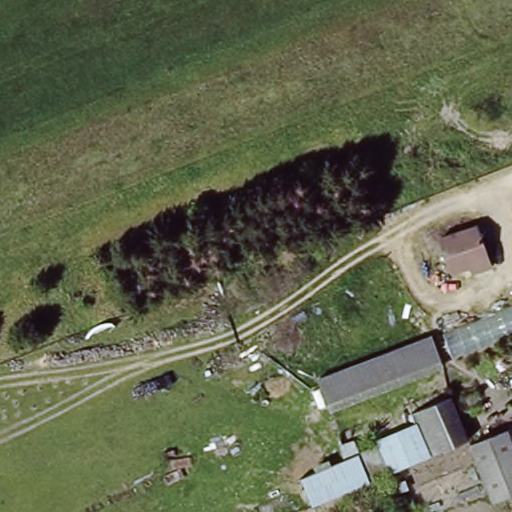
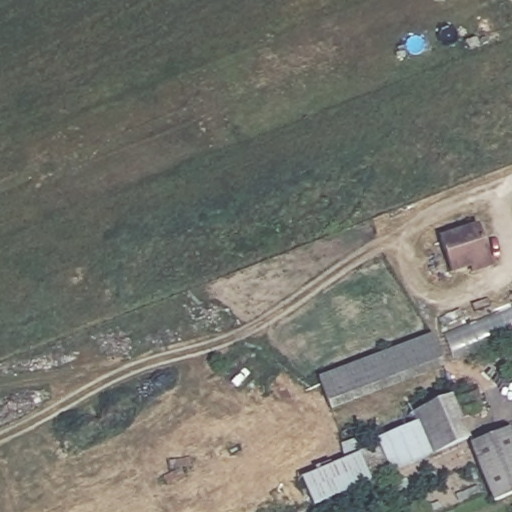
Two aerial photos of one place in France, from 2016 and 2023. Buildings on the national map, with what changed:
unchanged [(437,239),(495,220),(508,259),(450,278),(437,239)]
unchanged [(512,330),(445,354),(447,366),(328,410),(316,378),(512,306),(512,330)]
unchanged [(377,450),(375,441),(415,426),(411,413),(453,398),(466,441),(312,508),(302,480),(377,450)]
unchanged [(512,438),(512,497),(490,505),(470,447),(509,429),(512,438)]

